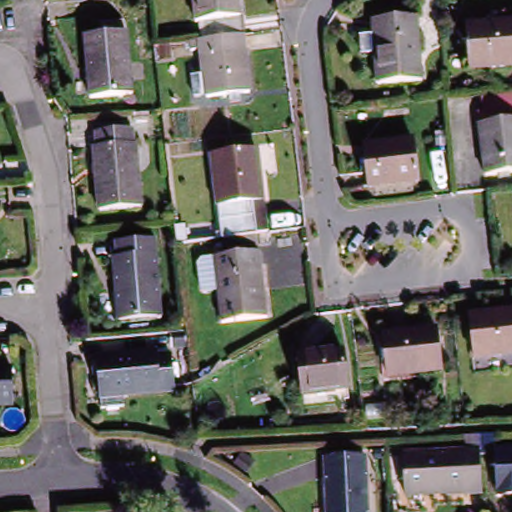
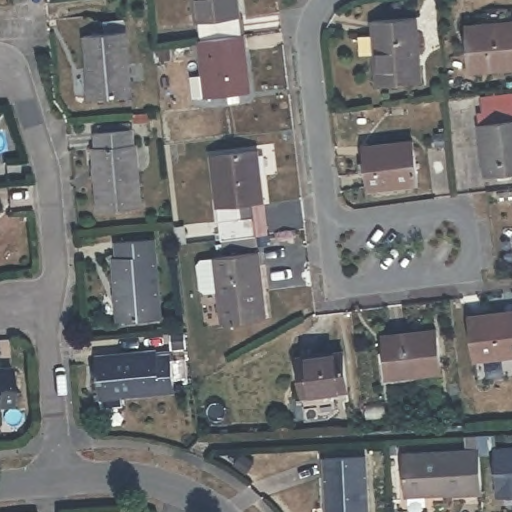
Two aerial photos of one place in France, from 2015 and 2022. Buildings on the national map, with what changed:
unchanged [(240,108),(228,109),(225,95),(190,97),(190,79),(202,78),(200,53),(188,54),(188,41),(199,40),(195,0),(239,0),(245,51),(249,93),(240,94),(240,108)]
unchanged [(380,86),(377,54),(375,36),(373,20),(412,15),(421,81),(380,86)]
unchanged [(472,68),(466,29),(512,21),(512,61),(472,68)]
unchanged [(90,101),(85,37),(129,35),(132,99),(90,101)]
unchanged [(505,179),(506,186),(495,187),(493,181),(482,181),(474,119),(512,115),(512,178),(505,179)]
unchanged [(94,149),(97,148),(97,134),(101,134),(101,128),(131,127),(131,133),(134,133),(135,147),(141,149),(144,211),(98,212),(94,149)]
unchanged [(361,187),(356,147),(417,142),(420,180),(361,187)]
unchanged [(255,198),(256,217),(221,219),(215,152),(261,149),(267,196),(255,198)]
unchanged [(258,239),(258,248),(224,251),(221,219),(256,217),(255,198),(267,196),(272,237),(258,239)]
unchanged [(116,319),(113,260),(118,260),(117,241),(155,240),(158,317),(116,319)]
unchanged [(227,295),(214,296),(208,291),(206,267),(211,262),(224,260),(260,257),(266,322),(230,325),(227,295)]
unchanged [(470,355),(468,315),(512,313),(512,353),(470,355)]
unchanged [(387,347),(392,347),(391,331),(439,330),(441,370),(394,373),(393,357),(388,357),(387,347)]
unchanged [(98,403),(97,389),(95,353),(154,349),(154,353),(171,352),(174,390),(122,392),(122,402),(98,403)]
unchanged [(301,393),(298,362),(345,359),(347,390),(301,393)]
unchanged [(0,368),(8,368),(9,400),(0,399),(0,368)]
unchanged [(443,494),(404,496),(401,455),(458,453),(456,439),(464,438),(474,436),(492,435),(492,444),(486,445),(485,453),(475,453),(478,498),(445,499),(443,494)]
unchanged [(501,497),(497,453),(512,451),(512,496),(501,497)]
unchanged [(327,454),(366,454),(370,512),(330,512),(327,454)]

